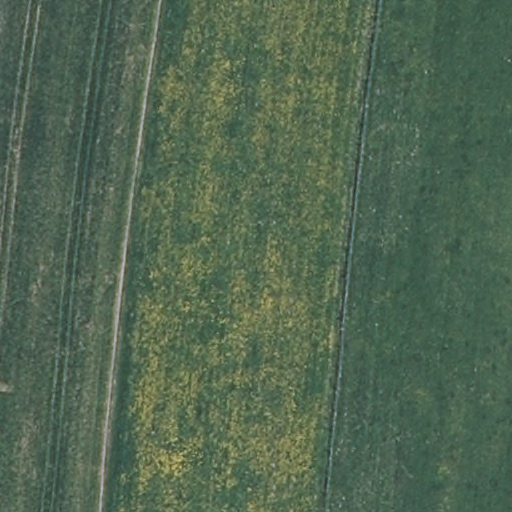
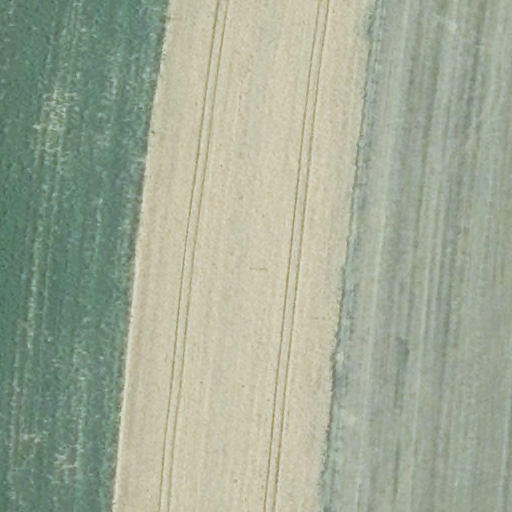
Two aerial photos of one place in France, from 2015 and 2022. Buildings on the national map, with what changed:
[]

